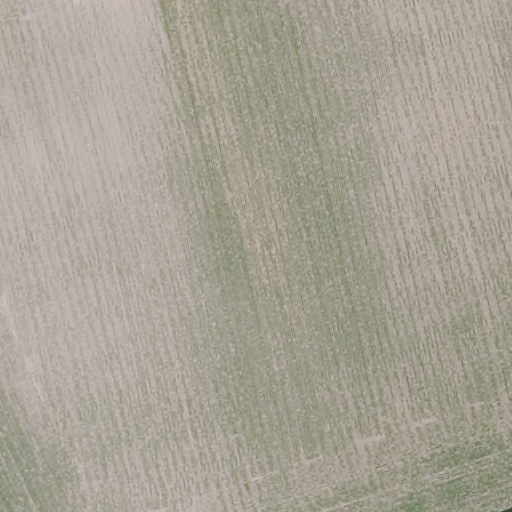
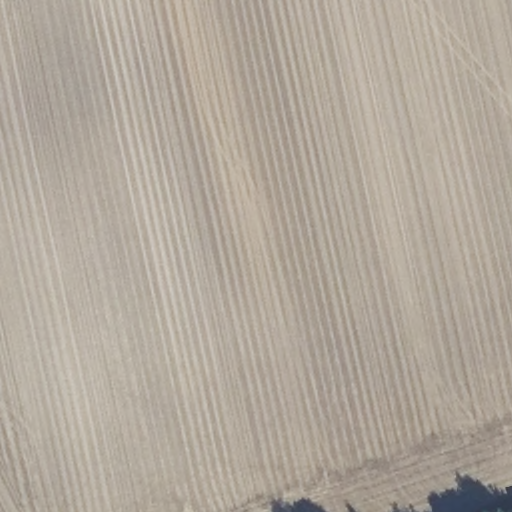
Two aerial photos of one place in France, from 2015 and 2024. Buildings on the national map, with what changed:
[]

